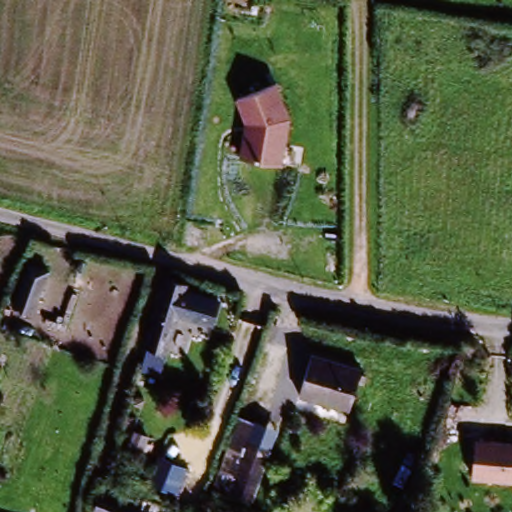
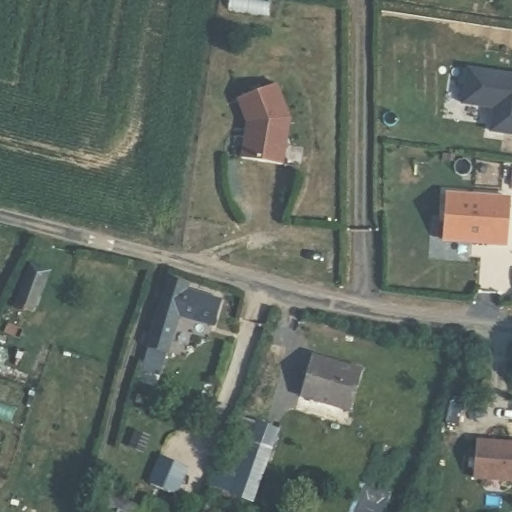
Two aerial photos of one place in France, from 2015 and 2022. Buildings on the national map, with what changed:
new [(492,108),(462,104),(467,67),(512,74),(512,135),(489,131),(492,108)]
unchanged [(244,123),(234,100),(276,85),(290,121),(283,164),(239,154),(244,123)]
new [(443,241),(446,191),(510,196),(506,245),(443,241)]
unchanged [(53,272),(35,312),(19,306),(37,265),(53,272)]
unchanged [(203,319),(169,310),(154,361),(134,355),(150,305),(159,275),(178,281),(177,285),(210,295),(203,319)]
unchanged [(305,386),(316,350),(359,362),(348,400),(305,386)]
unchanged [(282,423),(252,504),(208,486),(236,410),(282,423)]
unchanged [(476,438),(512,441),(512,480),(475,477),(476,438)]
unchanged [(104,495),(154,512),(99,512),(104,495)]

